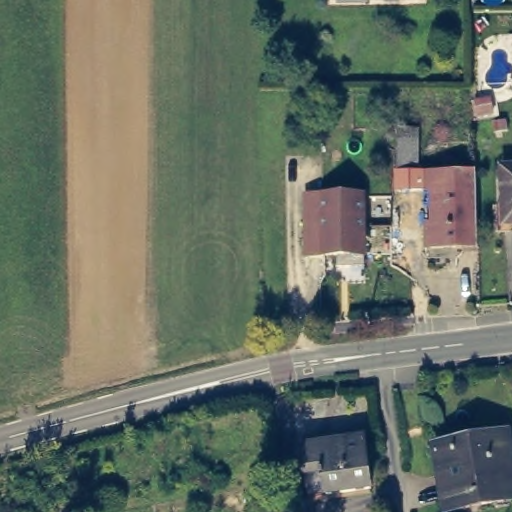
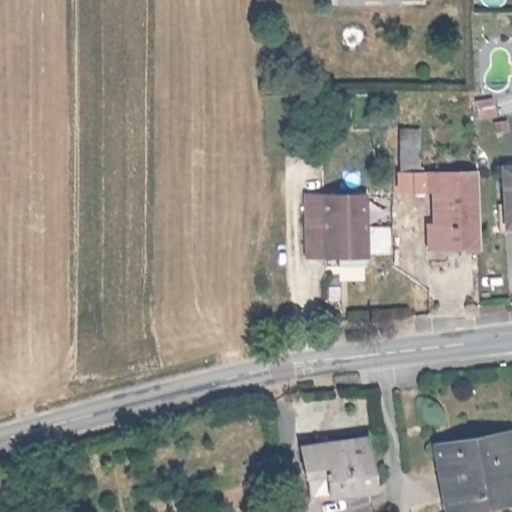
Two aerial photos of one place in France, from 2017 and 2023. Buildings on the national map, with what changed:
unchanged [(478,247),(419,246),(419,222),(429,222),(431,193),(419,194),(418,179),(397,178),(396,129),(427,133),(427,169),(478,170),(478,247)]
unchanged [(504,227),(503,168),(512,168),(512,226),(504,227)]
unchanged [(343,193),(341,203),(366,203),(364,267),(336,268),(337,254),(319,254),(322,193),(343,193)]
unchanged [(368,431),(374,491),(306,499),(296,442),(368,431)]
unchanged [(500,443),(509,504),(455,512),(441,512),(432,452),(500,443)]

